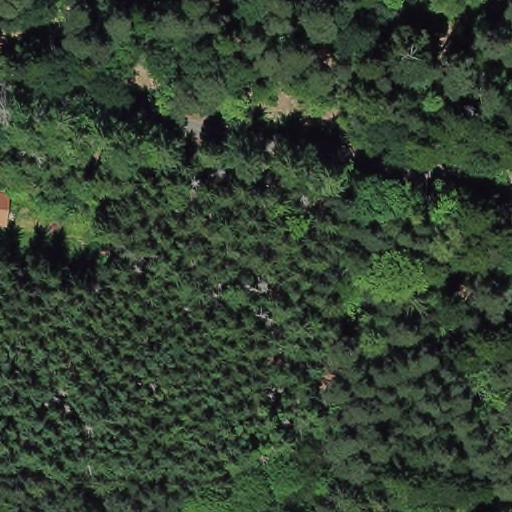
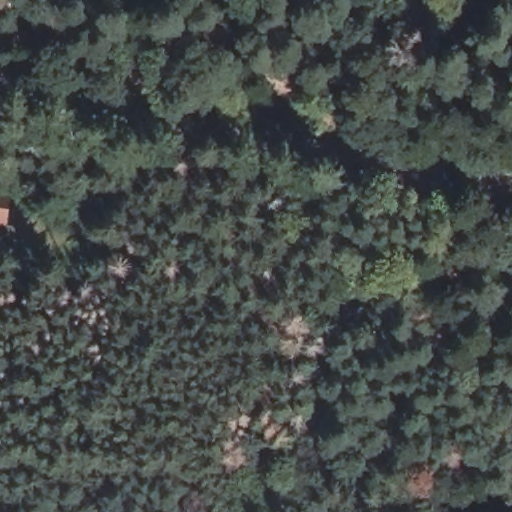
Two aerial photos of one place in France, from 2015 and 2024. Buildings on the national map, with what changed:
unchanged [(14,196),(13,225),(0,223),(0,194),(14,196)]

